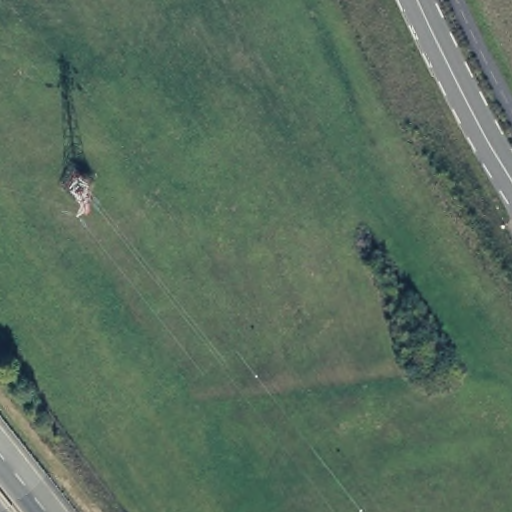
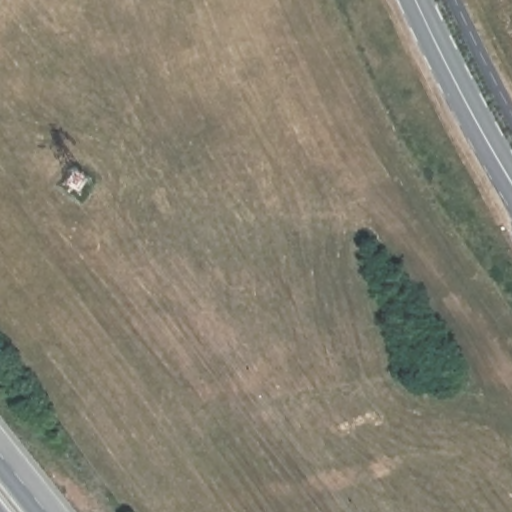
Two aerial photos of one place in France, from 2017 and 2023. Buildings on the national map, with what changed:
[]

